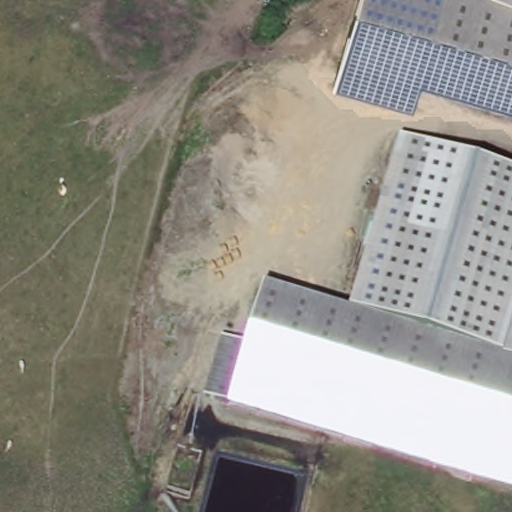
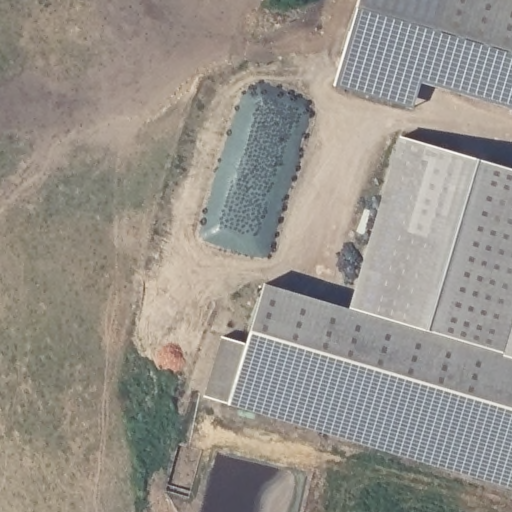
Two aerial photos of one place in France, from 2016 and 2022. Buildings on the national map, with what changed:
unchanged [(427,83),(420,81),(414,108),(333,86),(358,0),(449,0),(427,83)]
unchanged [(427,83),(449,0),(512,0),(512,106),(427,83)]
unchanged [(399,136),(512,168),(512,331),(505,355),(348,310),(399,136)]
unchanged [(249,342),(265,286),(505,355),(512,331),(512,488),(228,403),(206,396),(223,336),(249,342)]

